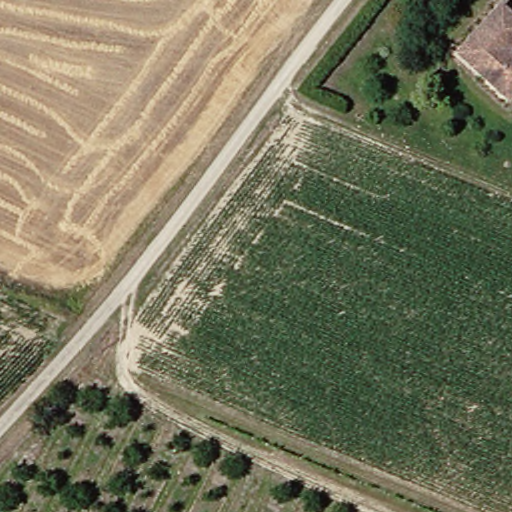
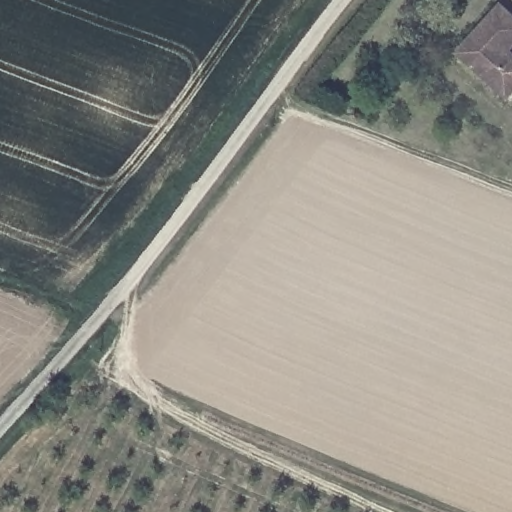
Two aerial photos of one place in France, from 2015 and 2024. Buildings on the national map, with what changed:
unchanged [(505,102),(459,48),(510,8),(512,10),(512,96),(505,102)]

